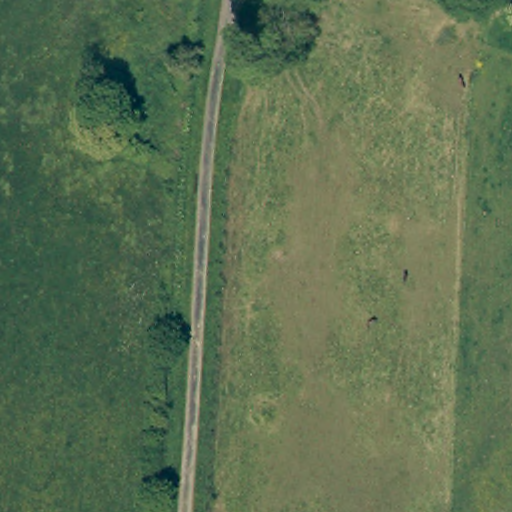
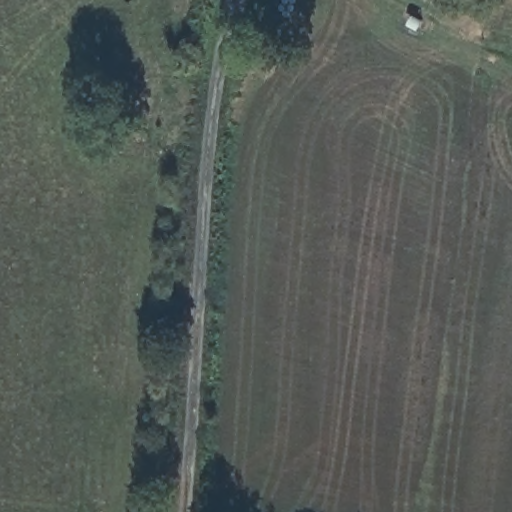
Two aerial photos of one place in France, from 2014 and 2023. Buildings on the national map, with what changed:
[]

